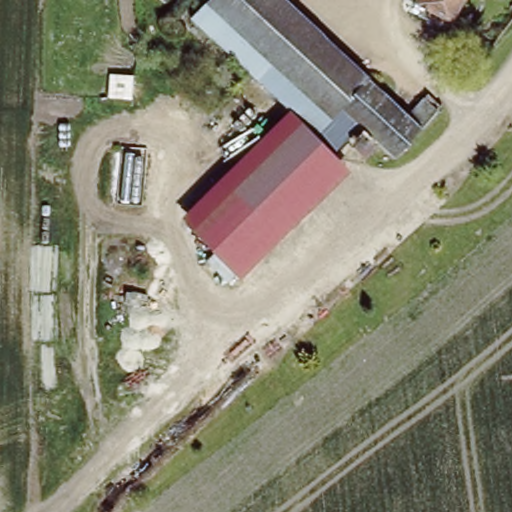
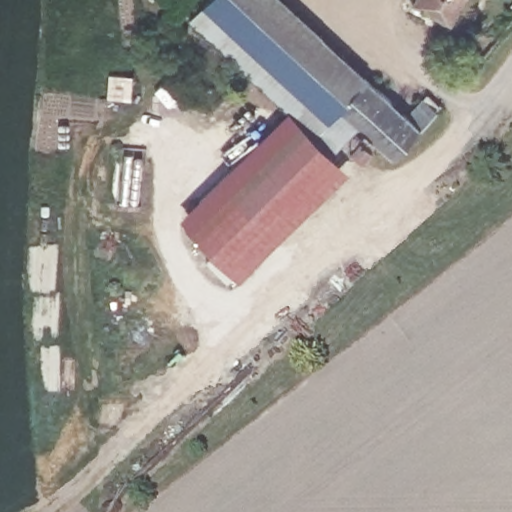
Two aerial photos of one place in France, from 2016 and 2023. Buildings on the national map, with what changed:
unchanged [(339,109),(314,136),(188,17),(204,0),(274,0),(363,84),(339,109)]
unchanged [(415,11),(421,0),(466,0),(451,30),(415,11)]
unchanged [(400,118),(421,96),(435,112),(395,159),(339,109),(363,84),(400,118)]
unchanged [(260,162),(295,125),(311,140),(346,172),(294,227),(244,180),(260,162)]
unchanged [(244,180),(294,227),(243,282),(193,232),(244,180)]

